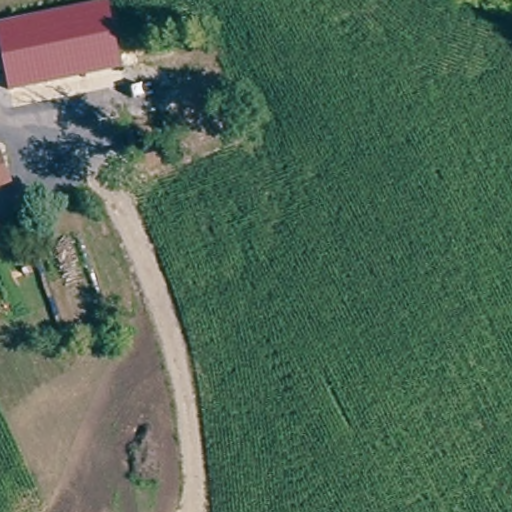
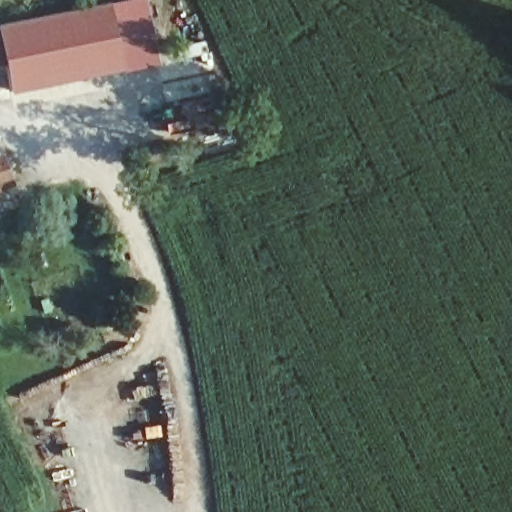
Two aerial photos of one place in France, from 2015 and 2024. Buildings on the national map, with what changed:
unchanged [(0,24),(108,0),(123,69),(9,93),(0,47),(0,24)]
new [(123,69),(108,0),(111,0),(144,0),(158,64),(123,69)]
unchanged [(0,186),(0,154),(10,182),(0,186)]

